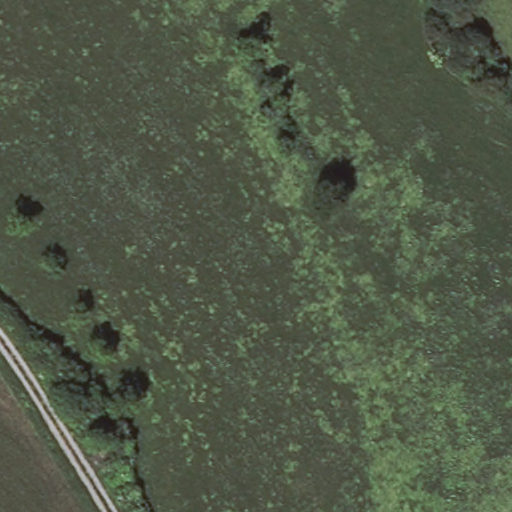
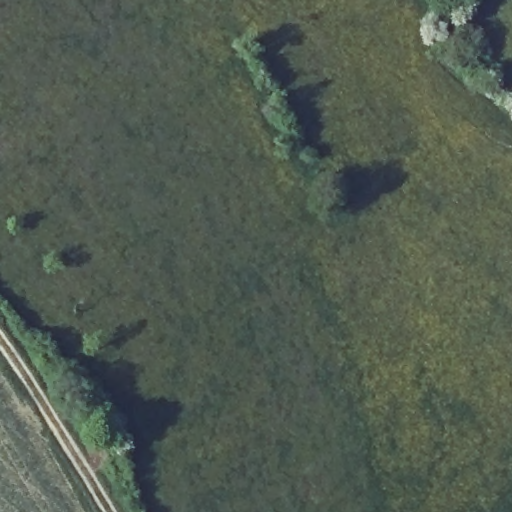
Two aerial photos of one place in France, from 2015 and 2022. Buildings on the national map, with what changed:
unchanged [(103,438),(113,461),(93,470),(82,447),(103,438)]

